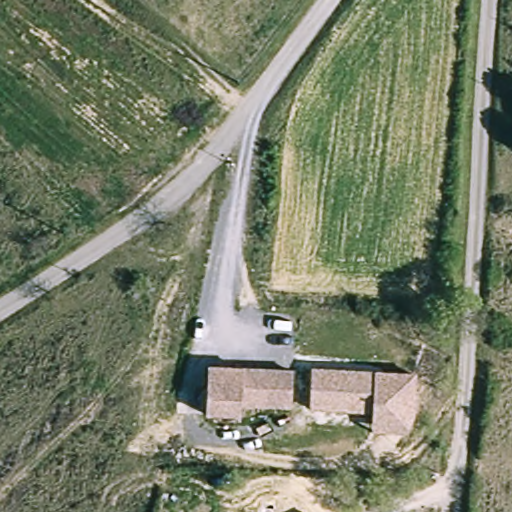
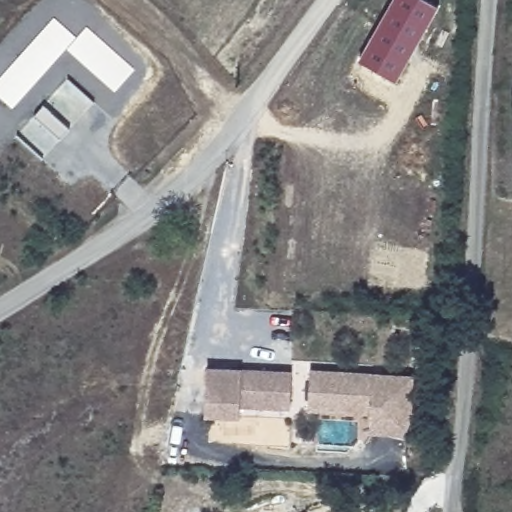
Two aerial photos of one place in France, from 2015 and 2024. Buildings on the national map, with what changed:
new [(438,6),(396,82),(359,60),(392,0),(427,0),(438,6)]
new [(33,118),(43,107),(69,130),(60,141),(33,118)]
unchanged [(294,370),(293,407),(242,406),(242,417),(206,416),(208,368),(294,370)]
unchanged [(412,417),(402,434),(368,433),(369,416),(310,413),(311,369),(414,373),(412,417)]

